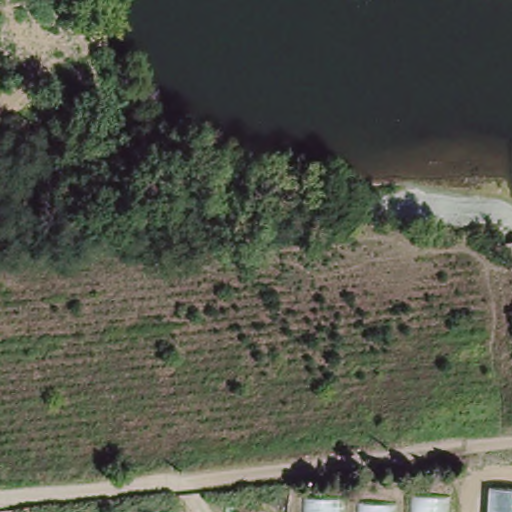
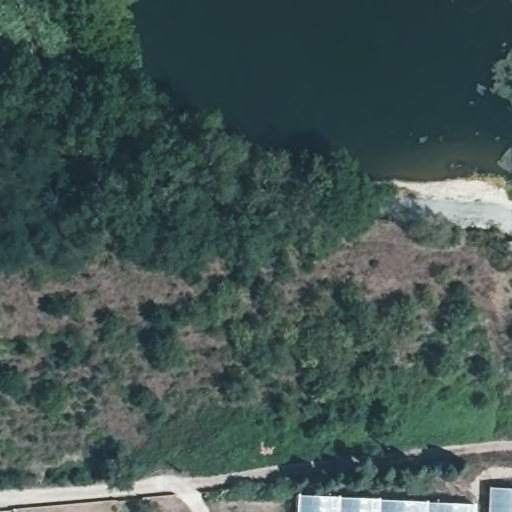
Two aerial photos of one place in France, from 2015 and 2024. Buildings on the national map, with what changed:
unchanged [(55,123),(54,142),(34,141),(35,122),(55,123)]
unchanged [(507,253),(507,243),(512,243),(512,253),(507,253)]
unchanged [(512,486),(512,512),(495,512),(497,486),(512,486)]
unchanged [(454,498),(453,512),(414,512),(415,498),(454,498)]
unchanged [(350,500),(349,512),(309,512),(309,499),(350,500)]
unchanged [(404,506),(403,512),(363,512),(363,505),(404,506)]

